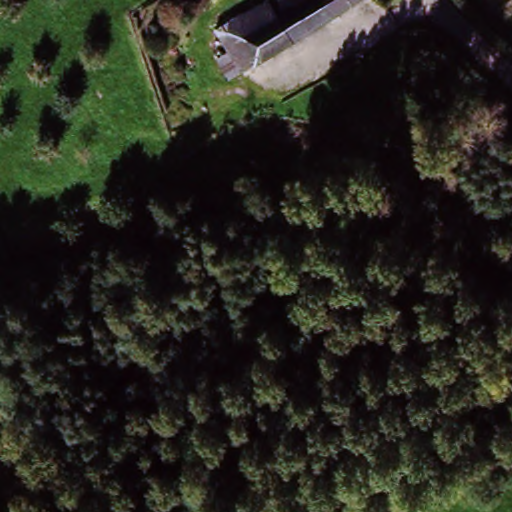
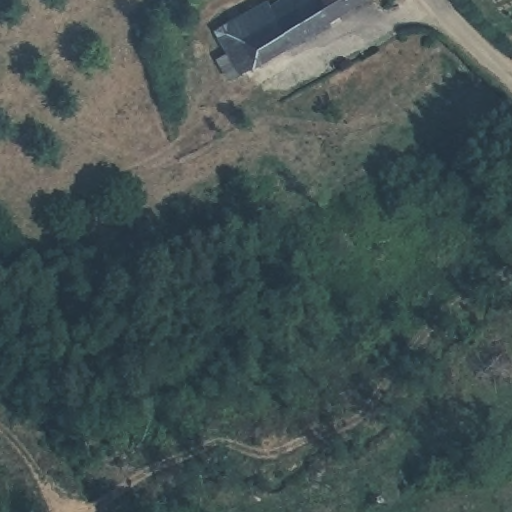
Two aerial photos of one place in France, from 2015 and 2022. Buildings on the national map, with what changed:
unchanged [(310,1),(312,0),(370,0),(246,80),(224,46),(238,37),(234,30),(270,9),(271,11),(293,0),(309,0),(310,1)]

